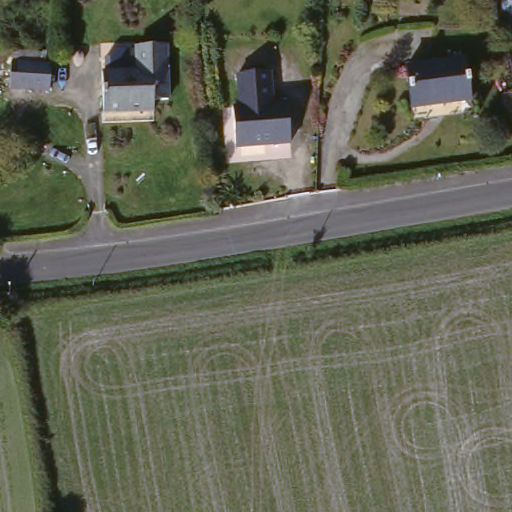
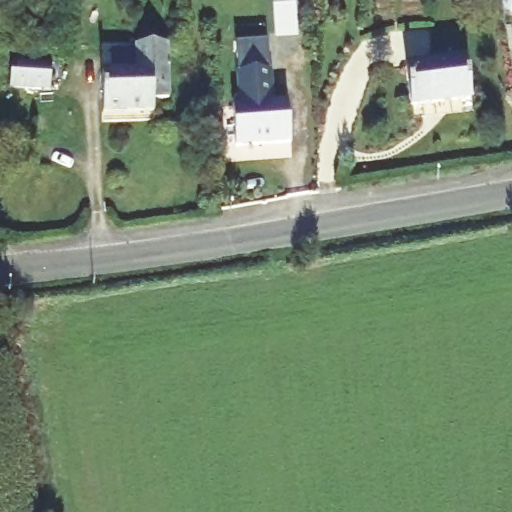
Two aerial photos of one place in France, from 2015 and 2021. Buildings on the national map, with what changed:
unchanged [(512,13),(512,26),(506,25),(512,13)]
unchanged [(34,49),(34,58),(49,57),(50,87),(9,90),(9,49),(34,49)]
unchanged [(137,74),(137,53),(167,52),(172,105),(159,106),(159,119),(102,122),(100,77),(137,74)]
unchanged [(463,62),(471,103),(411,115),(403,72),(463,62)]
unchanged [(269,79),(270,109),(285,107),(287,147),(234,151),(230,110),(239,110),(237,80),(269,79)]

